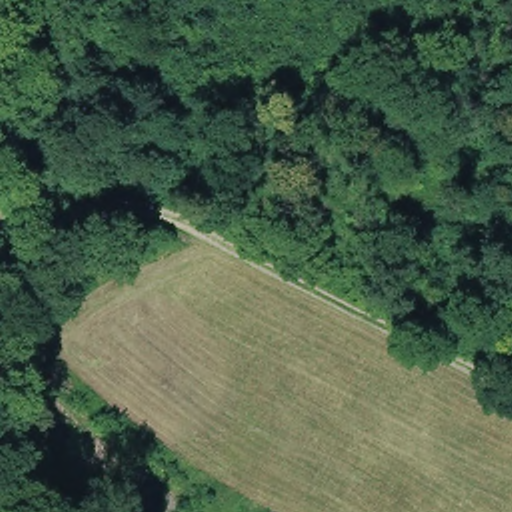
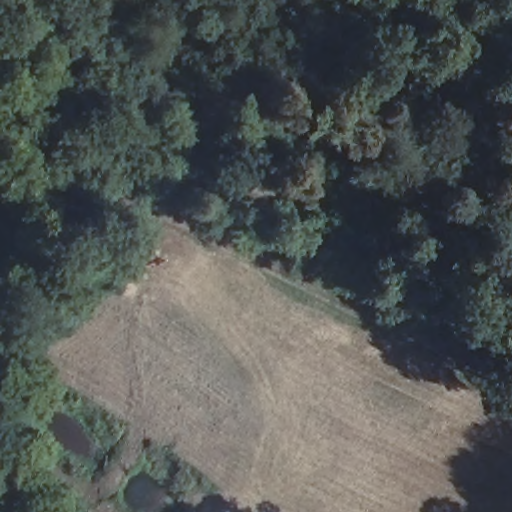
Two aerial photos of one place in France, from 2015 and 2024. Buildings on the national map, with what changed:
[]

